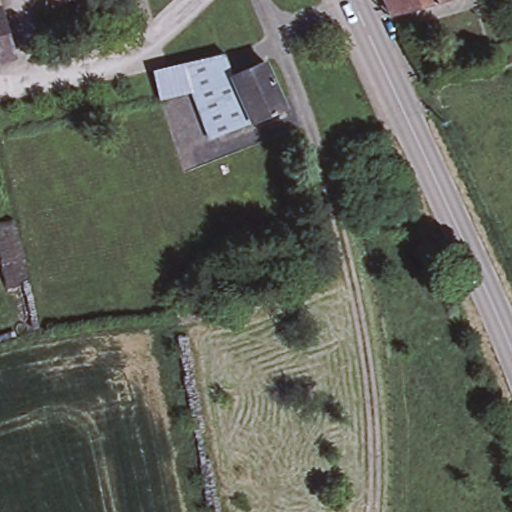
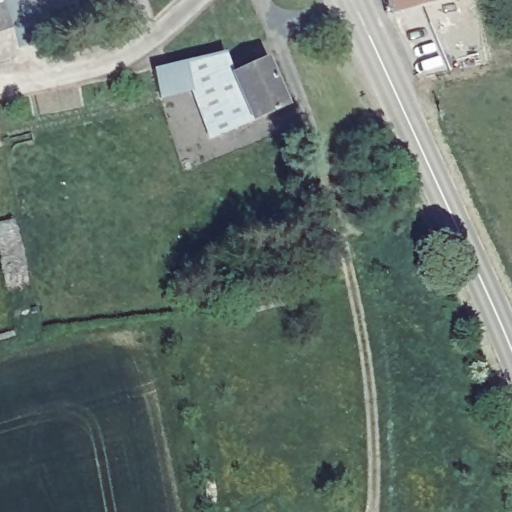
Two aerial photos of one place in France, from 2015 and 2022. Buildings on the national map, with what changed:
unchanged [(444,2),(387,15),(380,0),(443,0),(444,2)]
unchanged [(0,75),(0,19),(14,71),(0,75)]
unchanged [(157,100),(148,71),(150,71),(186,62),(219,54),(226,75),(257,62),(279,107),(246,122),(205,140),(187,92),(157,100)]

